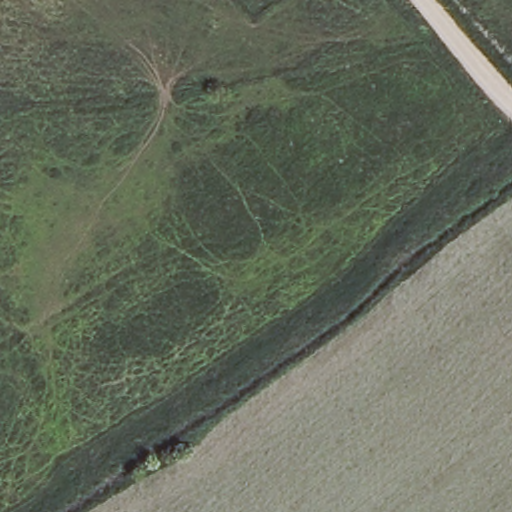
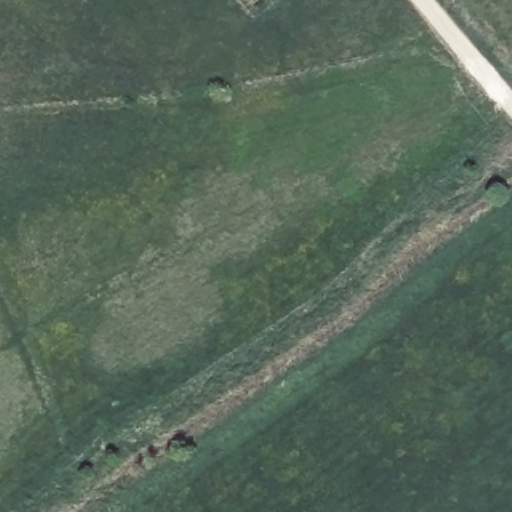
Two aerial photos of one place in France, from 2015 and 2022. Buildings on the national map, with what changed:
[]

